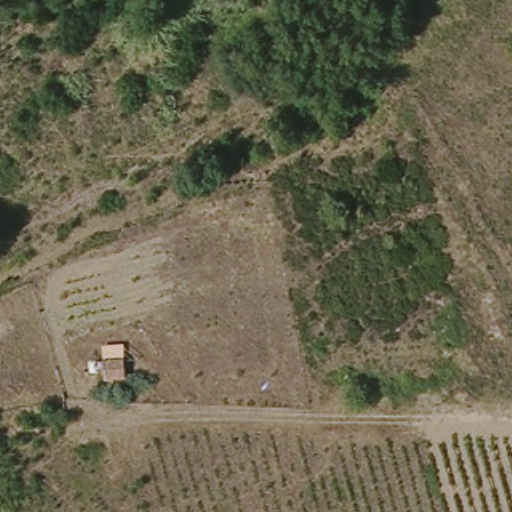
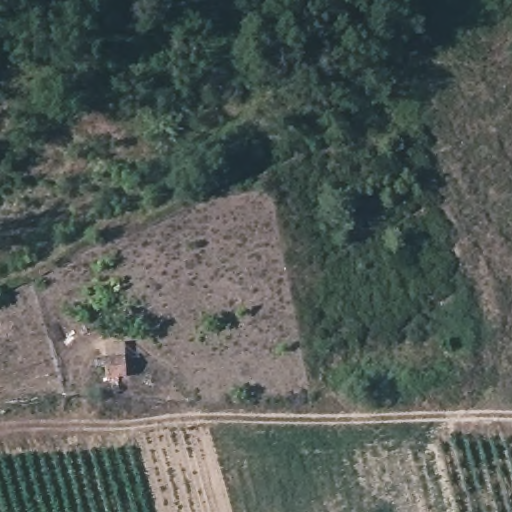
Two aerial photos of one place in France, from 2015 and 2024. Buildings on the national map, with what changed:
unchanged [(124,363),(125,378),(110,378),(110,363),(124,363)]

